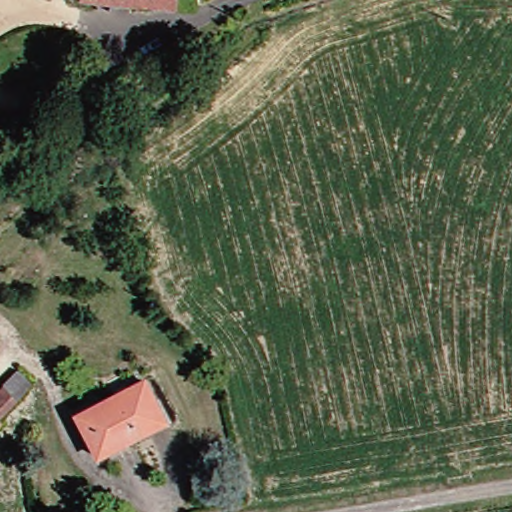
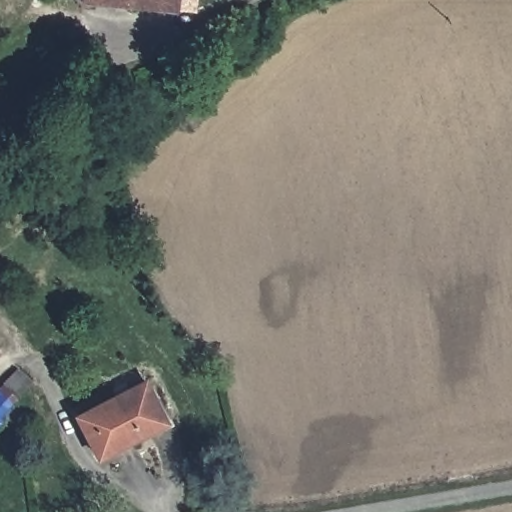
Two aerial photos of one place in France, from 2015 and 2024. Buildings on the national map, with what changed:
unchanged [(169,8),(92,0),(170,0),(169,8)]
unchanged [(5,413),(7,415),(0,424),(0,390),(7,381),(20,393),(5,413)]
unchanged [(97,448),(79,410),(143,381),(162,420),(97,448)]

